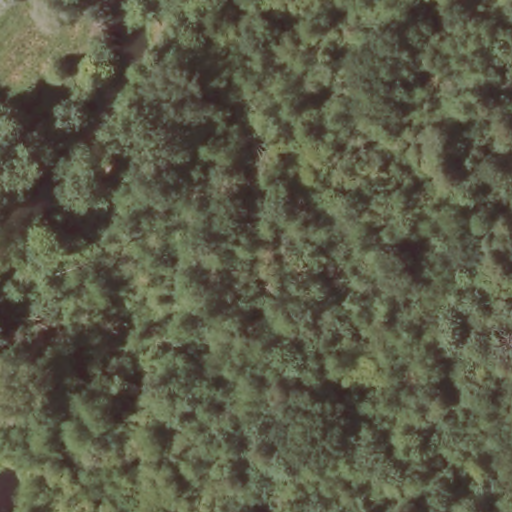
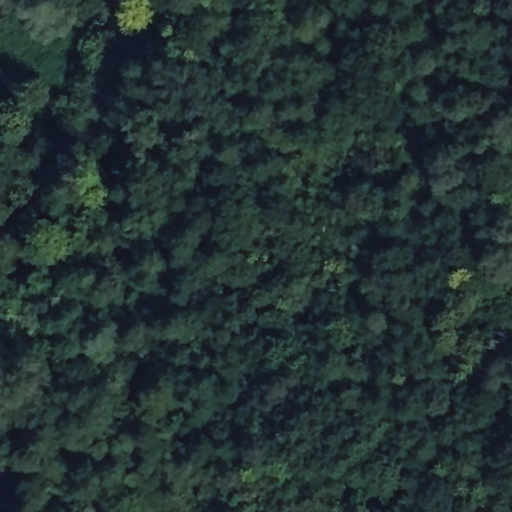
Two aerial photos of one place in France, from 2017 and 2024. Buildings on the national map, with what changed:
unchanged [(17,410),(5,418),(0,410),(0,408),(10,401),(17,410)]

